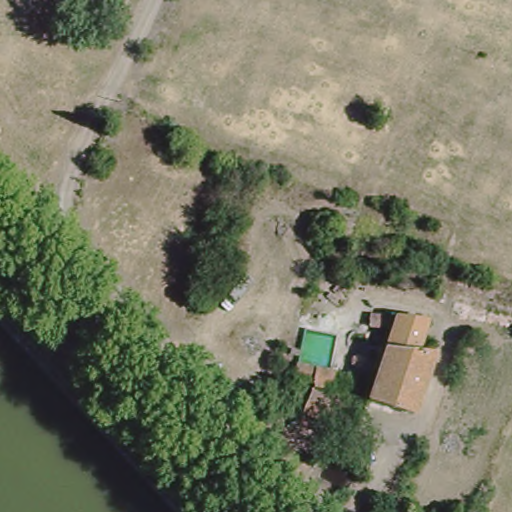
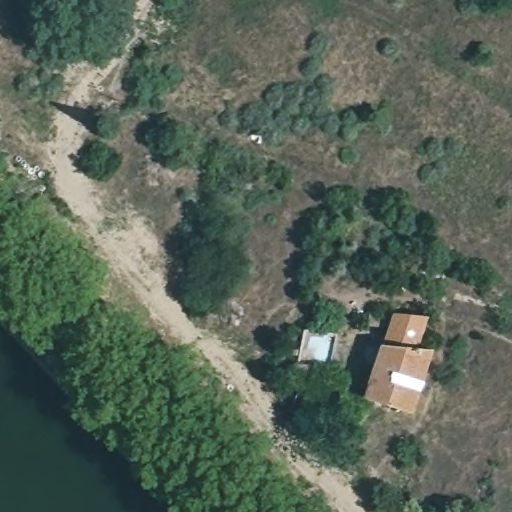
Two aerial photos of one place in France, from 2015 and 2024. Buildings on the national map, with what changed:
unchanged [(415,358),(432,360),(412,422),(369,407),(394,330),(367,321),(365,326),(349,320),(354,304),(371,310),(397,319),(425,328),(415,358)]
unchanged [(330,400),(363,412),(353,441),(289,417),(294,402),(305,406),(309,386),(292,380),(295,367),(332,381),(330,400)]

